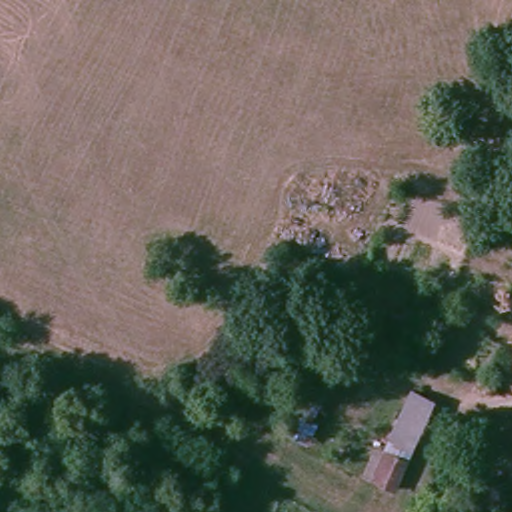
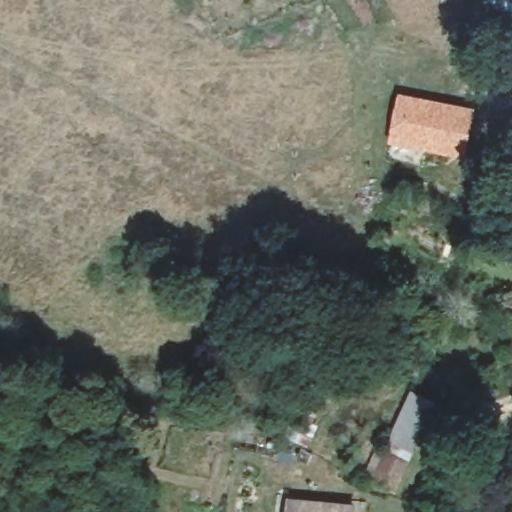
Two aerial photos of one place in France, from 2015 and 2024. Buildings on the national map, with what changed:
new [(396,92),(474,108),(464,160),(386,144),(396,92)]
unchanged [(382,463),(399,415),(422,425),(404,472),(382,463)]
new [(284,508),(307,512),(284,512),(284,508)]

